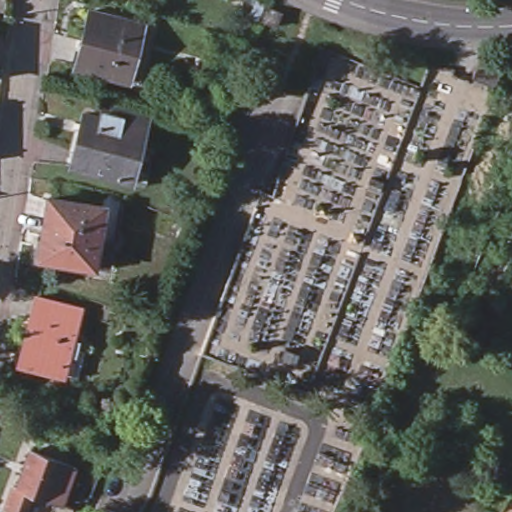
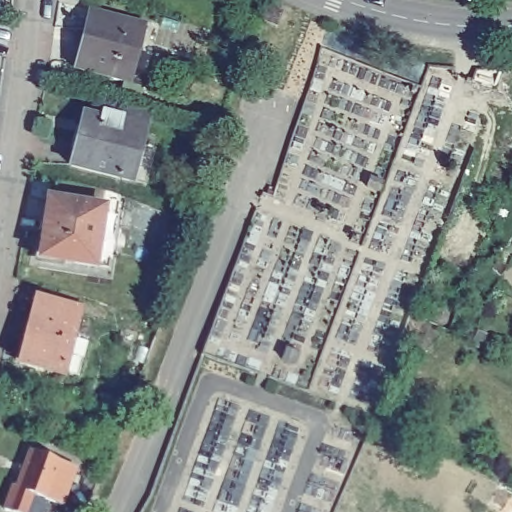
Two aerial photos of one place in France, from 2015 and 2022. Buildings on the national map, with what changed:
unchanged [(284,13),(283,16),(278,28),(264,22),(269,8),(276,10),(284,13)]
unchanged [(143,28),(128,84),(76,70),(91,14),(143,28)]
unchanged [(84,115),(100,120),(104,105),(148,116),(140,145),(155,149),(146,186),(70,166),(84,115)]
unchanged [(106,195),(111,196),(99,271),(84,268),(94,209),(96,192),(106,195)]
unchanged [(30,260),(31,256),(35,257),(38,239),(34,238),(40,200),(94,209),(84,268),(30,260)]
unchanged [(73,357),(69,356),(64,376),(33,367),(35,360),(25,357),(41,298),(85,310),(73,357)]
unchanged [(1,511),(9,487),(13,488),(25,452),(58,463),(71,468),(58,505),(45,501),(28,495),(23,512),(3,512),(1,511)]

